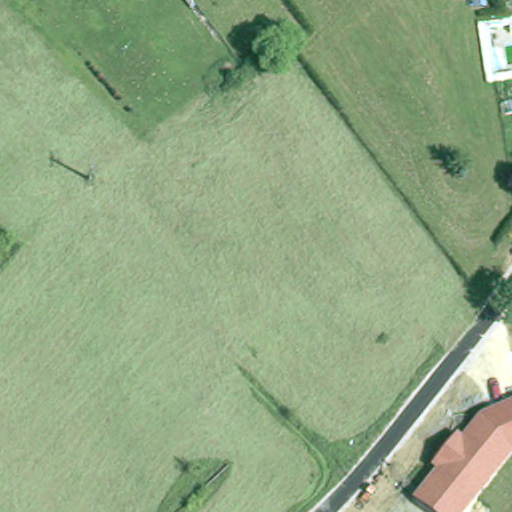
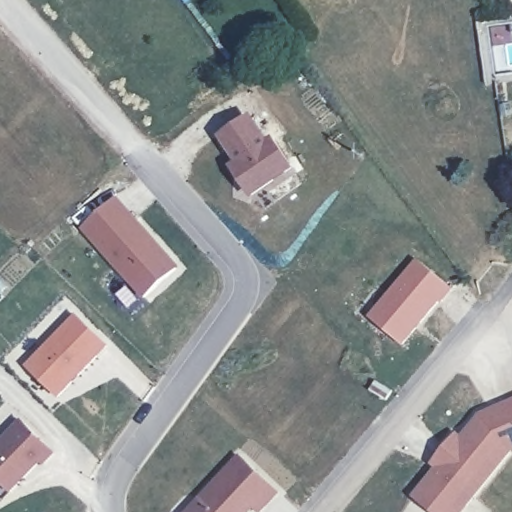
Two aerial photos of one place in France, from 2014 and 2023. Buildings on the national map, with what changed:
new [(273,136),(295,168),(253,199),(230,165),(235,161),(217,136),(251,113),(270,139),(273,136)]
new [(112,198),(131,218),(132,217),(157,244),(155,246),(175,267),(143,295),(80,227),(112,198)]
new [(402,345),(368,315),(416,258),(454,289),(442,304),(439,301),(402,345)]
new [(58,398),(24,365),(75,312),(110,346),(58,398)]
unchanged [(510,454),(465,512),(429,512),(412,498),(435,470),(430,464),(457,432),(462,434),(480,414),(512,402),(512,453),(510,454)]
new [(0,483),(0,439),(20,419),(54,453),(44,465),(40,462),(9,492),(0,483)]
new [(252,512),(186,512),(238,455),(279,493),(262,512),(257,512),(254,509),(252,512)]

